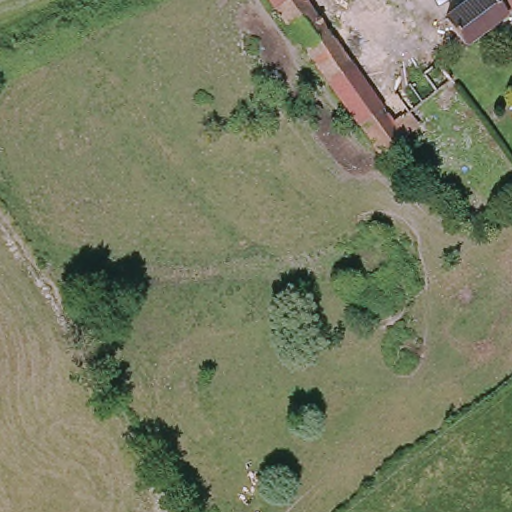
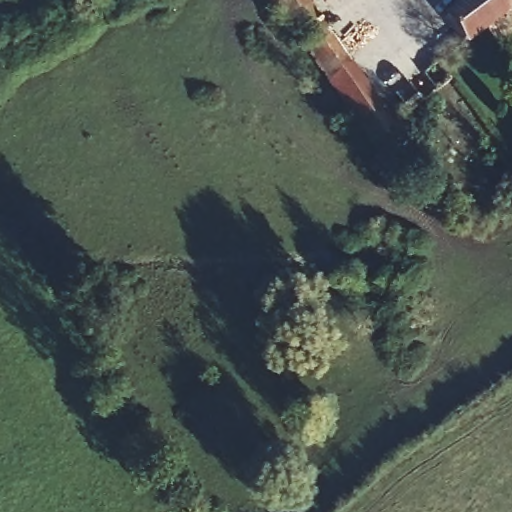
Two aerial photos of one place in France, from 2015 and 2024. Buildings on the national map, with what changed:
unchanged [(405,120),(390,99),(440,62),(454,83),(454,84),(412,115),(422,130),(406,141),(387,155),(273,0),(309,0),(330,30),(398,125),(405,120)]
unchanged [(469,0),(512,0),(512,7),(489,24),(461,44),(443,17),(469,0)]

